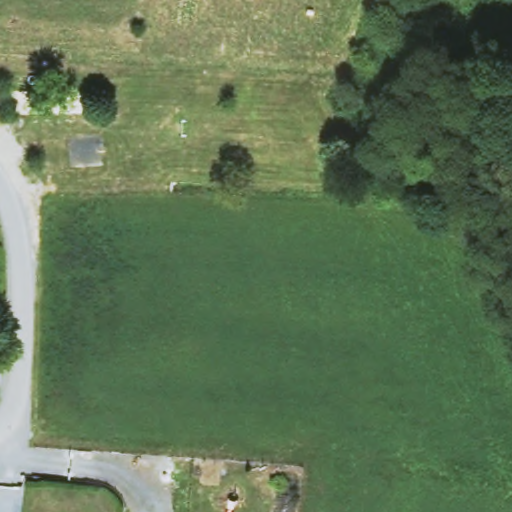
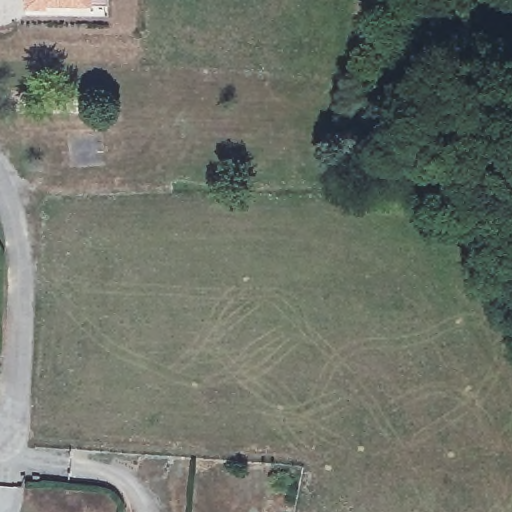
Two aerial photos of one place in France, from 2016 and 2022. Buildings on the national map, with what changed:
new [(90,7),(46,7),(45,11),(26,11),(26,0),(108,0),(108,7),(90,7)]

